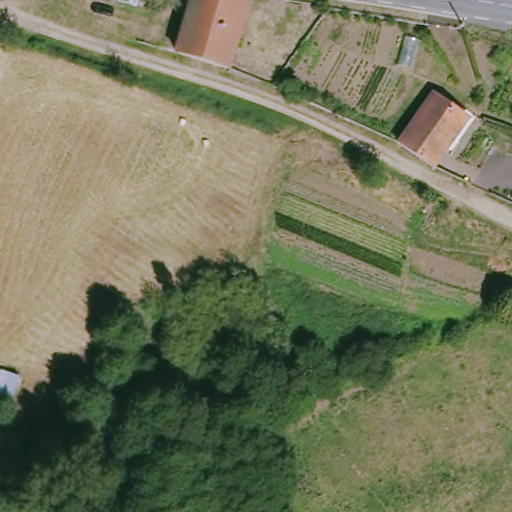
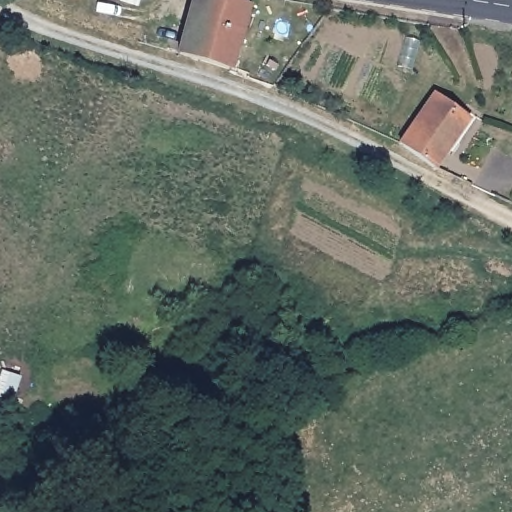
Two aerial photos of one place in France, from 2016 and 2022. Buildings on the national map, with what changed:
unchanged [(179,49),(193,0),(248,0),(226,67),(179,49)]
unchanged [(434,164),(399,139),(431,95),(467,119),(434,164)]
unchanged [(0,370),(1,367),(23,376),(13,403),(0,397),(0,370)]

